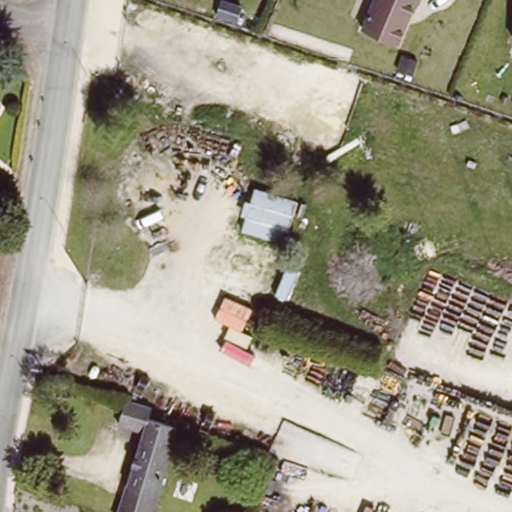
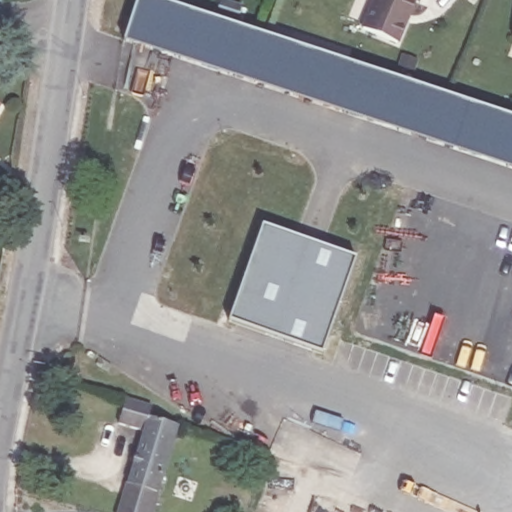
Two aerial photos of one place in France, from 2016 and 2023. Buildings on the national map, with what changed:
new [(512,117),(512,171),(122,42),(135,0),(155,0),(512,117)]
unchanged [(374,0),(421,0),(401,46),(362,29),(374,0)]
unchanged [(512,41),(511,40),(512,39),(512,41)]
unchanged [(2,106),(0,110),(0,105),(2,106)]
demolished [(299,201),(286,247),(242,231),(256,188),(299,201)]
new [(357,258),(323,355),(228,322),(263,225),(357,258)]
unchanged [(180,423),(160,494),(162,495),(157,512),(114,512),(115,506),(121,508),(127,487),(130,488),(145,431),(122,424),(127,406),(101,399),(100,403),(91,400),(93,389),(152,405),(150,415),(180,423)]

